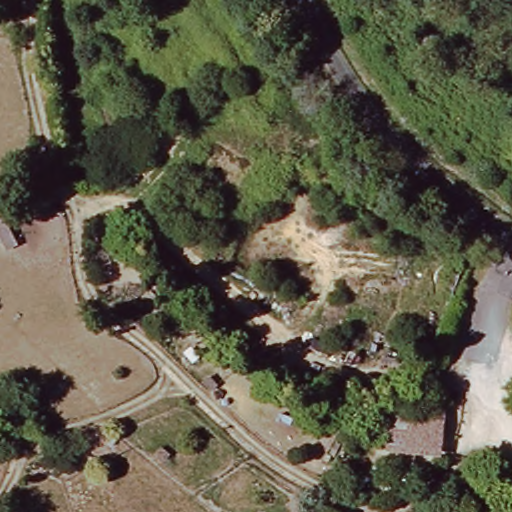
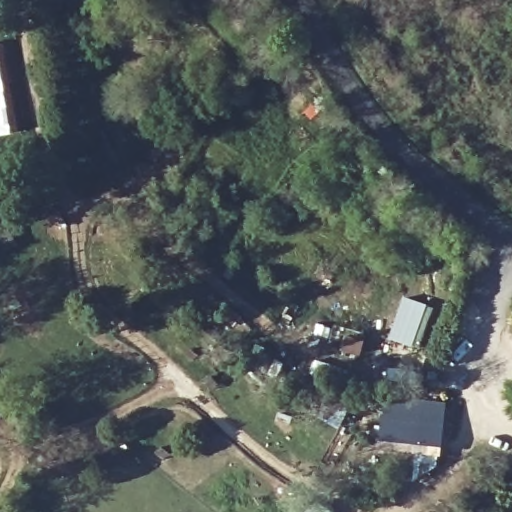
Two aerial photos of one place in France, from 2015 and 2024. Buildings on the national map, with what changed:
new [(433,308),(420,348),(390,339),(404,297),(433,308)]
unchanged [(377,449),(382,407),(449,412),(444,455),(377,449)]

